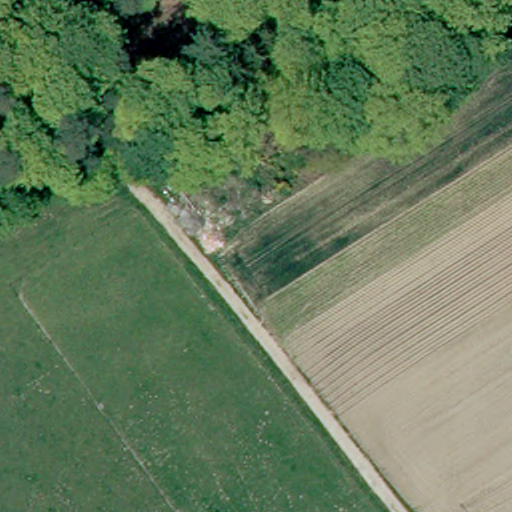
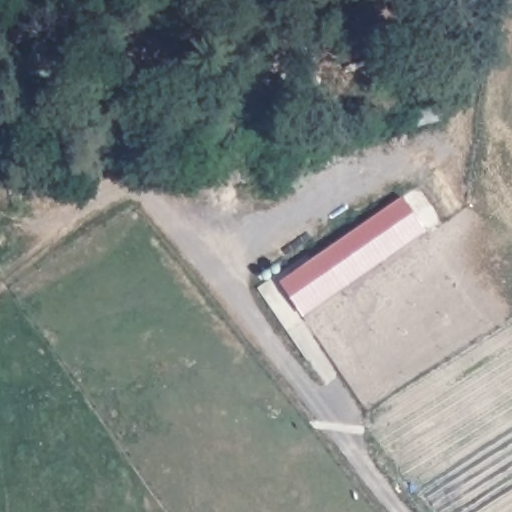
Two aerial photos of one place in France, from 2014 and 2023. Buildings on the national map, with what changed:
new [(29,17),(81,39),(69,65),(18,44),(29,17)]
new [(403,195),(427,231),(303,316),(279,282),(403,195)]

